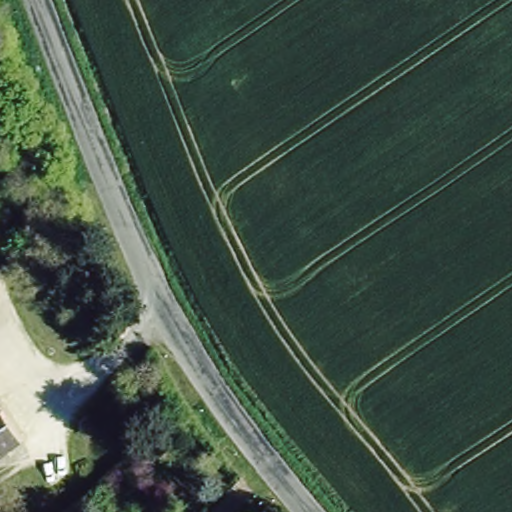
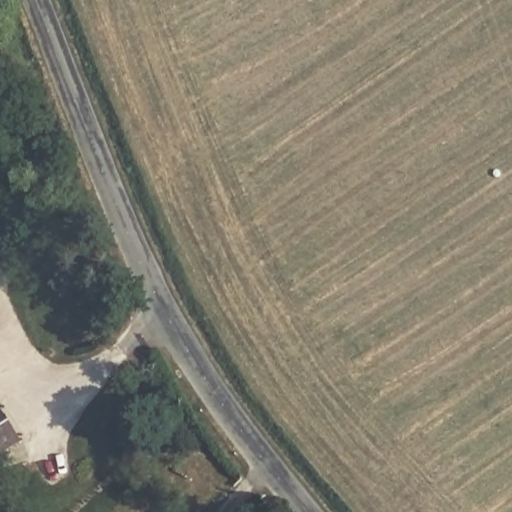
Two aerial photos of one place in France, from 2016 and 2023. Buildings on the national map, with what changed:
unchanged [(0,456),(0,419),(18,442),(0,456)]
unchanged [(10,497),(0,505),(0,484),(10,497)]

